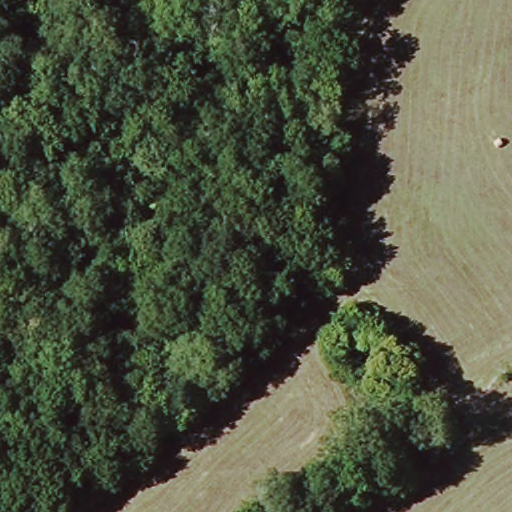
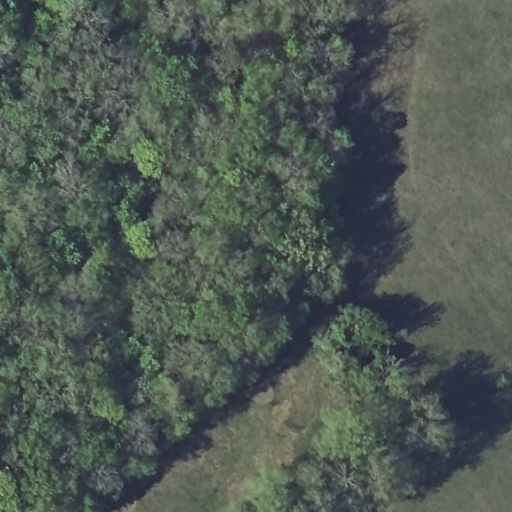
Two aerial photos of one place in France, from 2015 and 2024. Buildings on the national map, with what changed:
unchanged [(346,337),(396,362),(384,384),(335,354),(346,337)]

